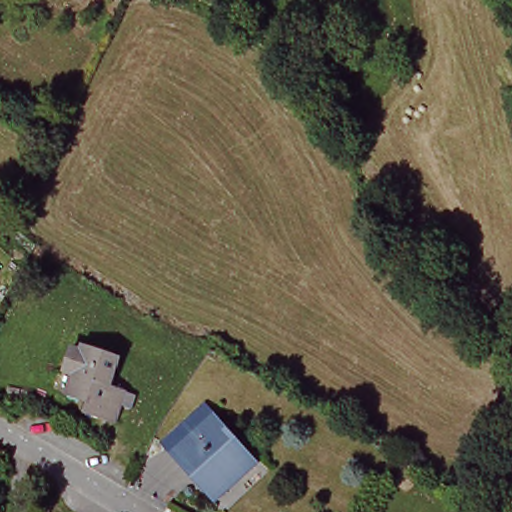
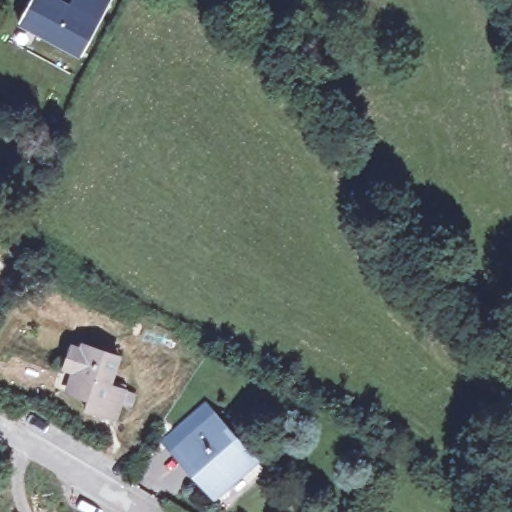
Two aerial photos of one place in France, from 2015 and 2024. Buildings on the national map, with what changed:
new [(70,4),(71,0),(112,0),(81,57),(19,25),(32,0),(63,0),(70,4)]
unchanged [(79,343),(90,347),(92,342),(127,355),(117,385),(142,394),(139,406),(129,402),(124,419),(91,407),(95,396),(75,389),(80,370),(72,366),(79,343)]
unchanged [(262,462),(252,471),(235,470),(240,477),(221,492),(185,449),(175,439),(214,407),(222,417),(223,416),(262,462)]

